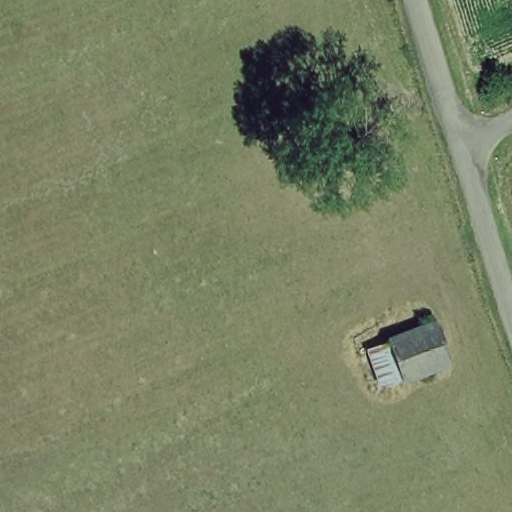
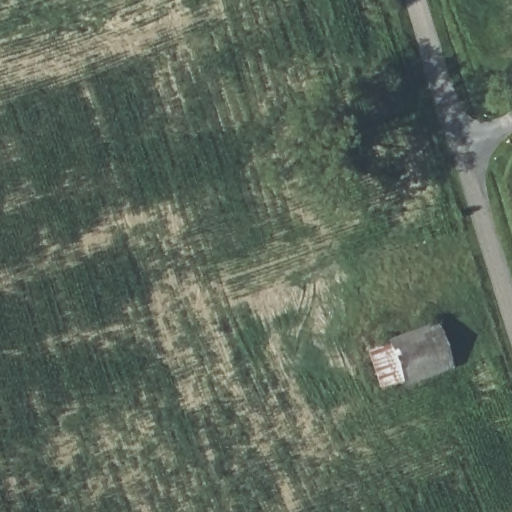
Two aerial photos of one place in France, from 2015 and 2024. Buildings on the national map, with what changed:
unchanged [(437,323),(451,365),(379,389),(366,349),(437,323)]

